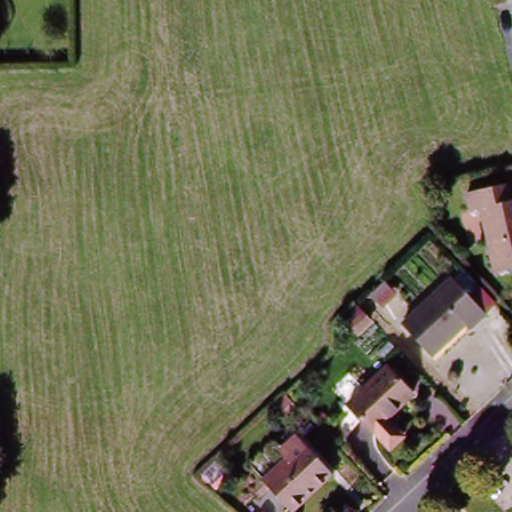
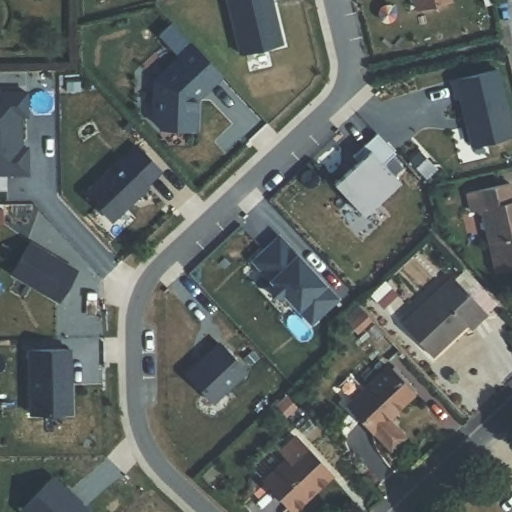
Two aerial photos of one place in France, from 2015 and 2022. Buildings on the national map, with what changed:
new [(281,46),(240,55),(228,0),(271,0),(281,46)]
new [(453,4),(419,12),(416,0),(452,0),(453,4)]
new [(193,46),(178,59),(158,34),(173,21),(193,46)]
new [(193,46),(221,77),(206,91),(204,88),(198,96),(197,131),(160,129),(153,121),(154,80),(193,46)]
new [(498,69),(512,125),(512,138),(469,147),(459,98),(453,99),(449,81),(498,69)]
new [(29,117),(21,118),(23,147),(28,146),(29,175),(0,176),(0,91),(28,90),(29,117)]
new [(359,165),(354,159),(378,137),(412,173),(364,218),(336,187),(359,165)]
new [(121,161),(148,188),(111,222),(85,195),(121,161)]
unchanged [(478,212),(459,216),(454,192),(512,182),(512,268),(492,271),(478,212)]
new [(337,301),(311,325),(286,298),(284,299),(271,296),(269,281),(253,262),(263,253),(278,238),(337,301)]
new [(78,270),(58,304),(10,274),(30,240),(78,270)]
unchanged [(399,322),(450,272),(486,312),(432,357),(399,322)]
unchanged [(394,292),(384,302),(374,291),(384,282),(394,292)]
new [(219,341),(248,372),(212,405),(183,372),(219,341)]
new [(69,368),(70,386),(70,415),(30,415),(29,351),(69,351),(69,368)]
unchanged [(339,402),(386,361),(416,396),(371,433),(339,402)]
unchanged [(258,479),(281,458),(273,451),(293,432),(335,473),(292,508),(258,479)]
new [(64,489),(64,488),(80,503),(79,504),(87,512),(27,512),(24,509),(53,479),(64,489)]

